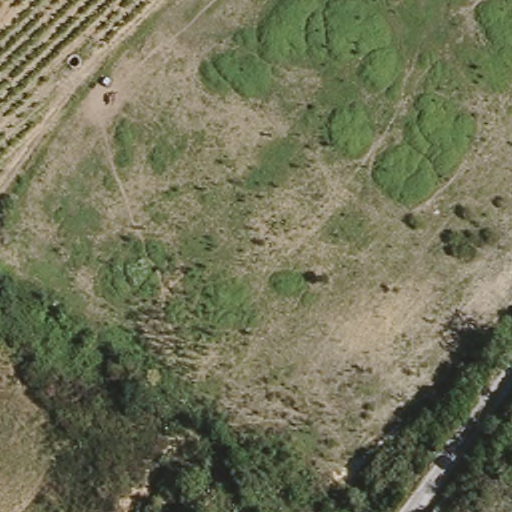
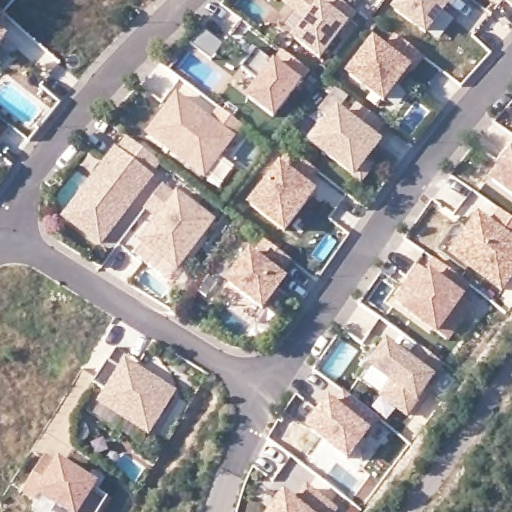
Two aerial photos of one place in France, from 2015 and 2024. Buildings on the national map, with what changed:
new [(357,14),(322,62),(293,40),(306,21),(284,4),(287,0),(318,0),(320,1),(320,0),(338,0),(357,14)]
new [(401,0),(442,0),(447,3),(426,31),(395,8),(401,0)]
new [(507,0),(512,0),(512,4),(507,0)]
new [(5,14),(0,20),(0,8),(5,13),(5,14)]
new [(0,41),(0,32),(5,36),(0,41)]
new [(396,83),(384,100),(349,73),(374,40),(386,49),(397,34),(423,55),(412,69),(399,86),(396,83)]
new [(256,49),(275,62),(284,50),(309,69),(274,116),(231,83),(256,49)]
new [(211,118),(219,105),(246,128),(206,179),(148,135),(178,94),(211,118)]
new [(339,111),(349,119),(360,104),(383,121),(371,136),(379,141),(366,159),(373,164),(361,180),(314,144),(339,111)]
new [(118,147),(120,149),(129,137),(160,160),(151,172),(153,173),(101,242),(72,220),(70,210),(113,154),(118,147)]
new [(512,153),(510,151),(512,148),(512,193),(493,179),(512,153)]
new [(292,150),(317,169),(305,184),(314,191),(285,230),(251,204),(292,150)]
new [(160,216),(146,206),(163,184),(176,195),(178,192),(214,219),(178,267),(142,240),(160,216)]
new [(479,214),(492,222),(502,209),(512,216),(512,271),(501,286),(452,251),(479,214)]
new [(251,253),(256,256),(267,240),(291,258),(280,274),(286,278),(263,307),(230,282),(251,253)]
new [(421,266),(427,270),(436,258),(468,281),(459,293),(471,301),(446,336),(396,301),(421,266)]
new [(388,343),(412,359),(422,345),(443,360),(408,411),(383,394),(393,380),(372,365),(388,343)]
new [(111,361),(125,370),(130,363),(178,392),(152,433),(104,404),(111,393),(97,384),(111,361)]
new [(330,400),(336,405),(346,391),(378,415),(349,455),(310,427),(330,400)]
new [(61,468),(65,464),(100,486),(98,489),(113,499),(104,512),(70,512),(45,497),(42,503),(28,494),(49,460),(61,468)]
new [(296,501),(307,485),(336,506),(331,512),(271,512),(285,493),(296,501)]

